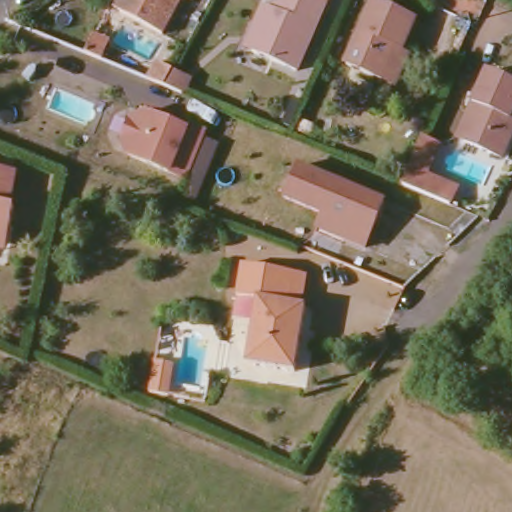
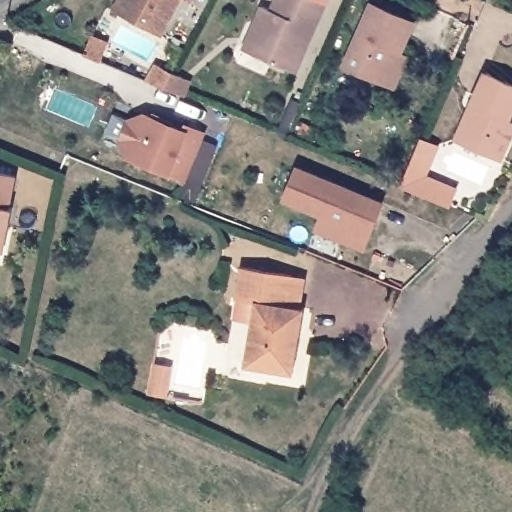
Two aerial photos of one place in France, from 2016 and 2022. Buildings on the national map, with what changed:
unchanged [(159,36),(117,12),(111,10),(117,0),(178,0),(159,36)]
unchanged [(189,2),(186,0),(190,0),(189,2)]
unchanged [(252,27),(262,6),(270,10),(275,0),(316,0),(322,3),(292,72),(248,52),(242,49),(252,27)]
unchanged [(329,5),(322,3),(316,0),(331,0),(329,5)]
unchanged [(393,89),(379,83),(343,66),(370,3),(414,23),(400,55),(406,57),(393,89)]
unchanged [(87,57),(95,38),(112,45),(102,64),(87,57)]
unchanged [(152,82),(160,64),(180,73),(199,82),(191,99),(172,90),(152,82)]
unchanged [(467,106),(483,73),(512,86),(512,106),(505,120),(512,123),(512,129),(499,158),(460,142),(453,139),(467,106)]
unchanged [(150,129),(140,150),(146,164),(122,154),(117,139),(126,119),(140,113),(164,123),(150,129)]
unchanged [(174,128),(177,135),(187,139),(189,134),(204,141),(205,136),(222,142),(202,188),(146,164),(140,150),(150,129),(164,123),(174,128)]
unchanged [(440,147),(427,178),(457,191),(450,207),(402,187),(423,140),(440,147)]
unchanged [(9,202),(13,202),(10,222),(3,252),(0,251),(0,167),(15,171),(9,202)]
unchanged [(384,204),(364,249),(344,241),(350,227),(285,199),(299,167),(384,204)]
unchanged [(257,302),(236,297),(242,266),(294,276),(305,278),(299,309),(305,310),(294,373),(245,365),(257,302)]
unchanged [(149,392),(154,361),(172,365),(167,396),(149,392)]

